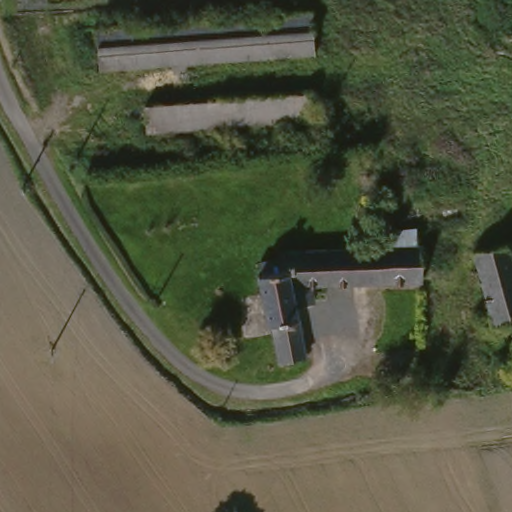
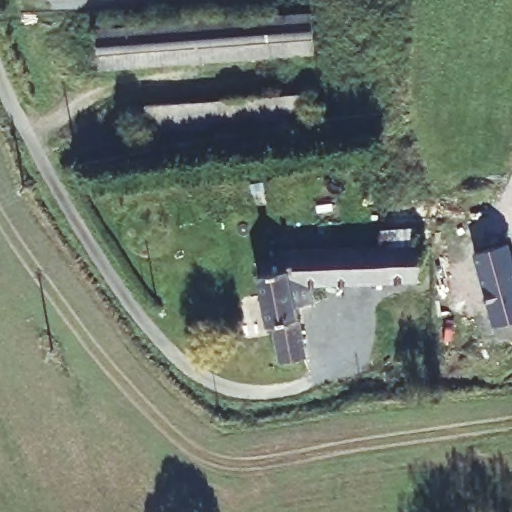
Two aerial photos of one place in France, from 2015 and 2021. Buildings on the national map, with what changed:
unchanged [(52,0),(64,0),(52,1),(52,0)]
unchanged [(311,15),(314,56),(100,73),(97,32),(311,15)]
unchanged [(310,96),(311,123),(147,133),(146,106),(310,96)]
unchanged [(381,224),(415,226),(416,250),(417,280),(306,283),(308,298),(289,303),(300,357),(275,362),(268,329),(262,331),(252,277),(257,276),(255,260),(285,255),(285,249),(376,249),(381,224)]
unchanged [(512,275),(512,327),(493,332),(474,261),(506,252),(512,275)]

